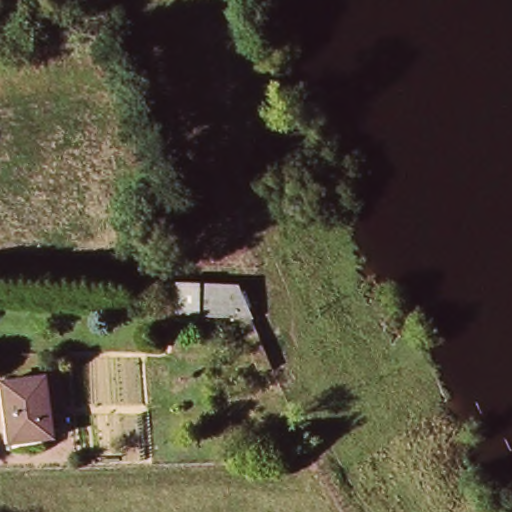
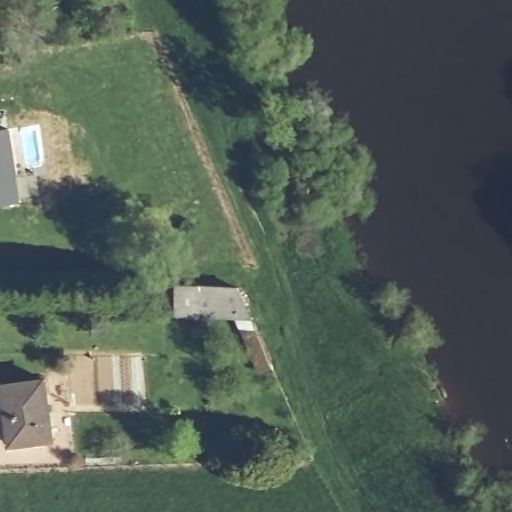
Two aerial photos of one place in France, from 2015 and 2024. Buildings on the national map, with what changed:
new [(9,128),(21,201),(0,205),(0,129),(9,128)]
unchanged [(259,290),(261,293),(271,319),(176,313),(177,284),(259,290)]
unchanged [(48,381),(56,440),(16,445),(9,385),(48,381)]

